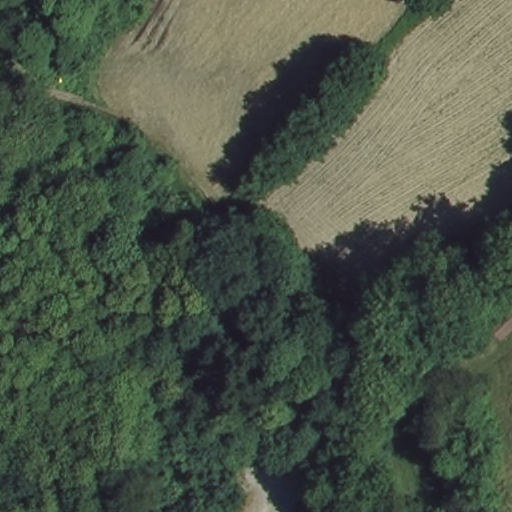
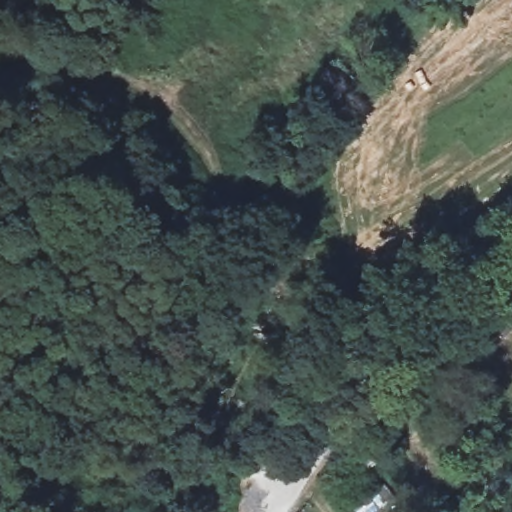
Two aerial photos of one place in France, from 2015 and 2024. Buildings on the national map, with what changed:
unchanged [(302,505),(312,512),(297,512),(302,505)]

